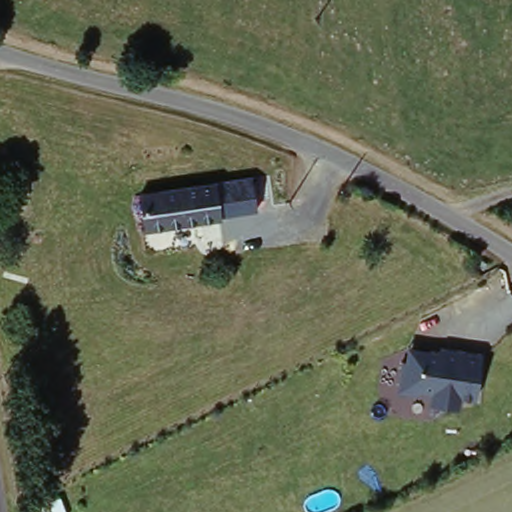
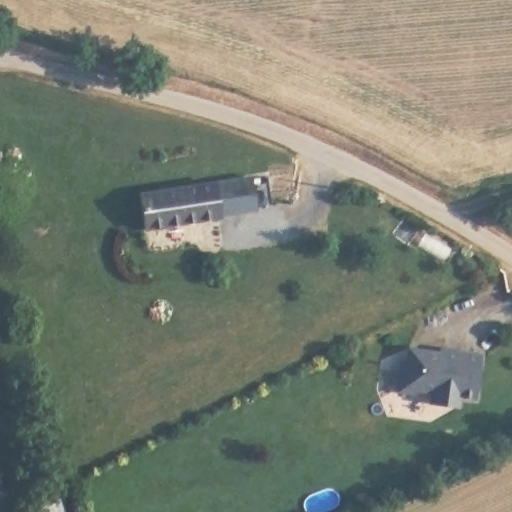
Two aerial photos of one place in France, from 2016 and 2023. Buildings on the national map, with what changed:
unchanged [(141,193),(218,181),(223,213),(146,225),(141,193)]
unchanged [(475,402),(456,400),(455,407),(427,406),(427,399),(393,395),(402,347),(436,354),(439,346),(481,351),(475,402)]

